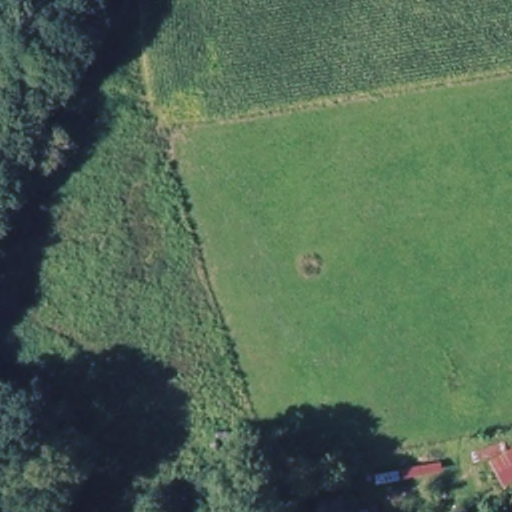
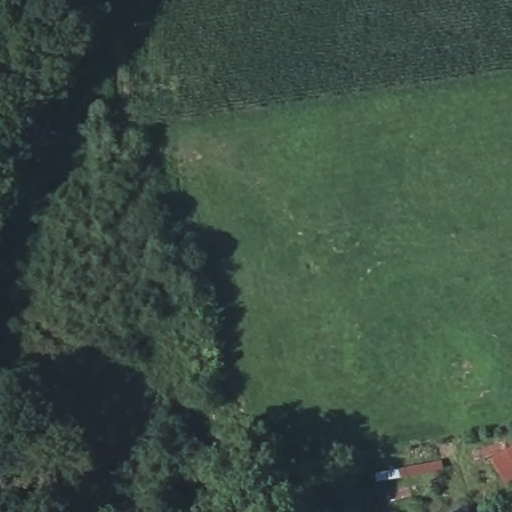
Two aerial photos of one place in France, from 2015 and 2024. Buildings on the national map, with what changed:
unchanged [(489,461),(512,448),(512,486),(509,488),(489,461)]
unchanged [(445,470),(375,484),(373,473),(442,460),(445,470)]

